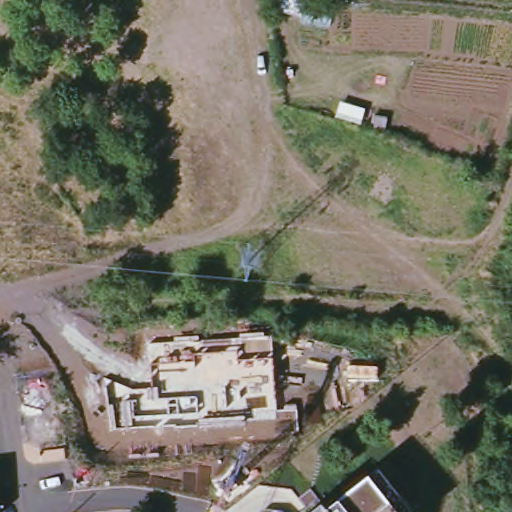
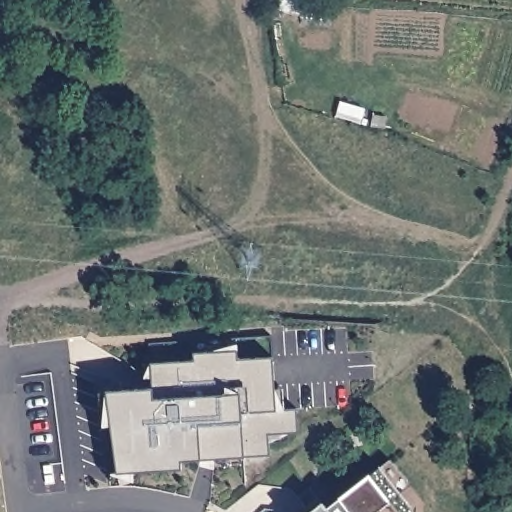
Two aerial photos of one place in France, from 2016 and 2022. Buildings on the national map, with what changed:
new [(103,403),(147,398),(147,372),(272,366),(275,415),(295,415),(297,440),(267,440),(268,461),(243,461),(243,467),(180,472),(180,481),(115,482),(103,403)]
unchanged [(328,507),(370,476),(383,467),(390,462),(411,488),(402,494),(413,512),(312,512),(325,501),(328,507)]

